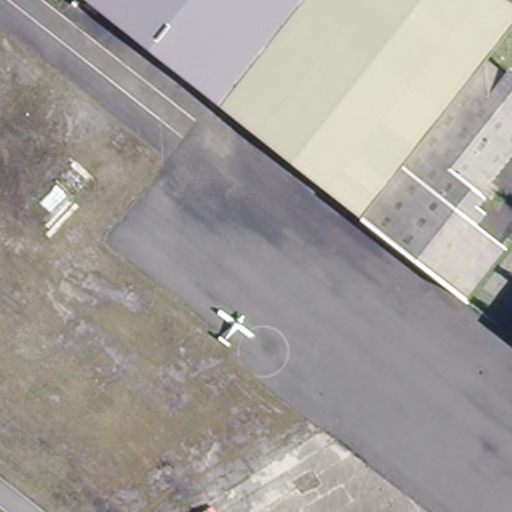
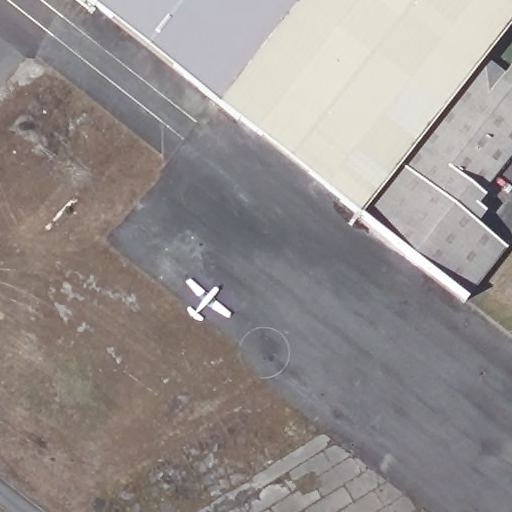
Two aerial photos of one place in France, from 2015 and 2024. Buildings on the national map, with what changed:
unchanged [(302,0),(217,106),(83,0),(302,0)]
unchanged [(512,21),(481,57),(503,74),(508,68),(511,70),(512,71),(512,149),(479,189),(470,200),(476,204),(485,210),(475,223),(507,247),(465,301),(217,106),(302,0),(497,0),(512,12),(512,21)]

